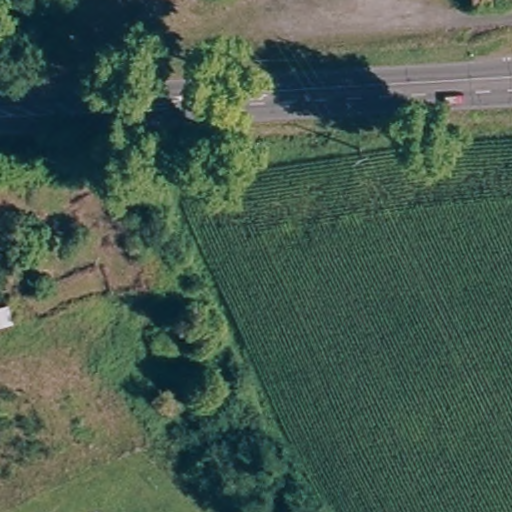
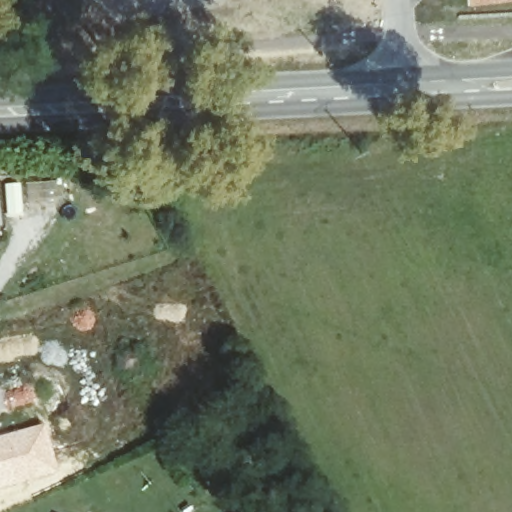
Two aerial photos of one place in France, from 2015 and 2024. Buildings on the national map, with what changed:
unchanged [(100,158),(101,172),(74,175),(73,160),(100,158)]
new [(57,474),(0,489),(0,436),(44,424),(57,474)]

